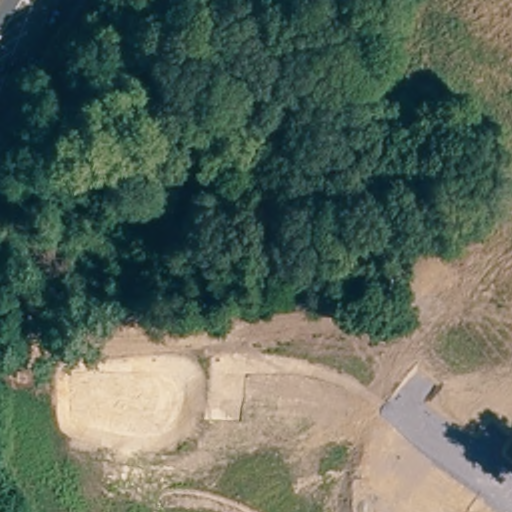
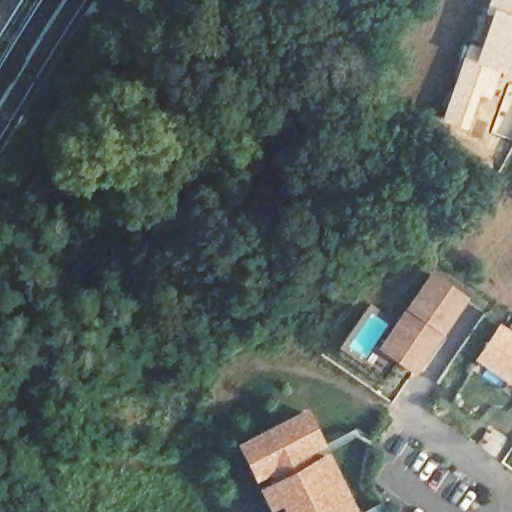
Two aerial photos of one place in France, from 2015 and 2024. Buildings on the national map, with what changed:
unchanged [(353,20),(343,19),(344,0),(355,0),(353,20)]
new [(512,14),(492,7),(487,5),(489,0),(512,0),(512,14)]
new [(512,14),(512,57),(510,62),(506,73),(500,71),(473,59),(492,7),(512,14)]
new [(463,55),(473,59),(500,71),(490,99),(479,95),(467,129),(440,119),(463,55)]
new [(512,63),(510,62),(512,57),(512,63)]
new [(469,296),(415,373),(377,346),(430,271),(469,296)]
new [(512,385),(474,360),(500,322),(512,331),(512,385)]
new [(264,510),(252,487),(263,482),(267,480),(260,467),(257,469),(248,473),(233,444),(242,440),(297,411),(312,440),(297,448),(303,461),(318,453),(348,510),(343,512),(279,512),(275,504),(264,510)]

